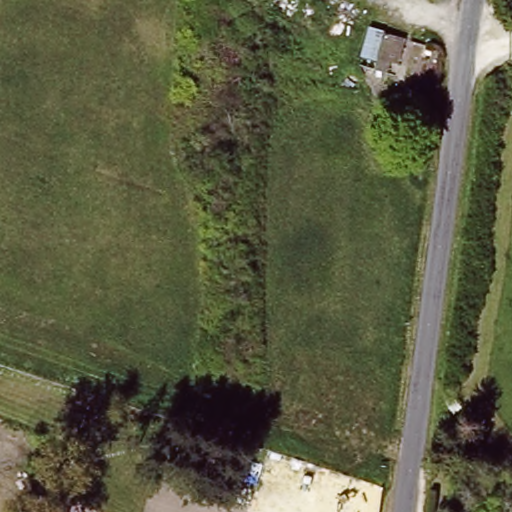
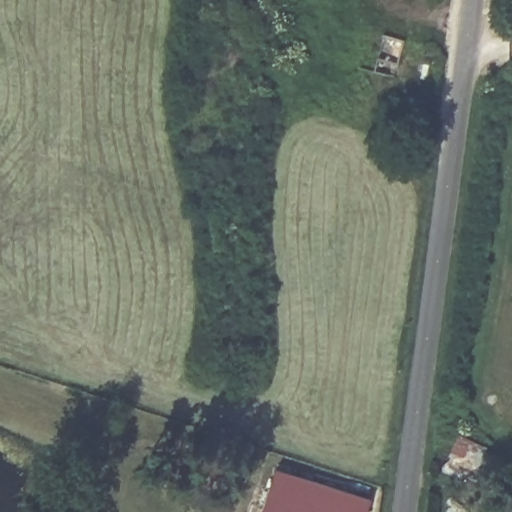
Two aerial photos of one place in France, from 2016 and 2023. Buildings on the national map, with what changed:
unchanged [(397,35),(394,63),(359,60),(362,26),(397,35)]
new [(264,512),(277,468),(372,497),(368,512),(264,512)]

